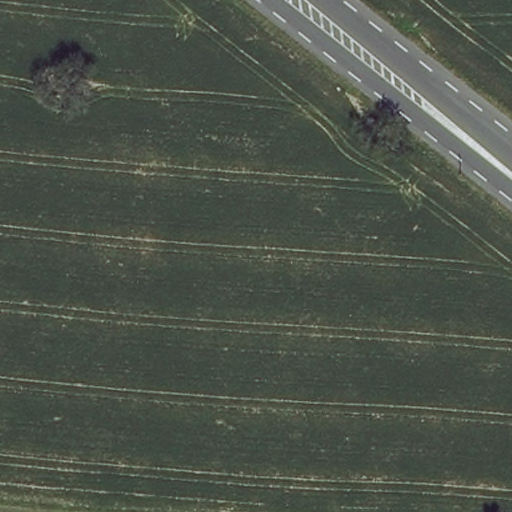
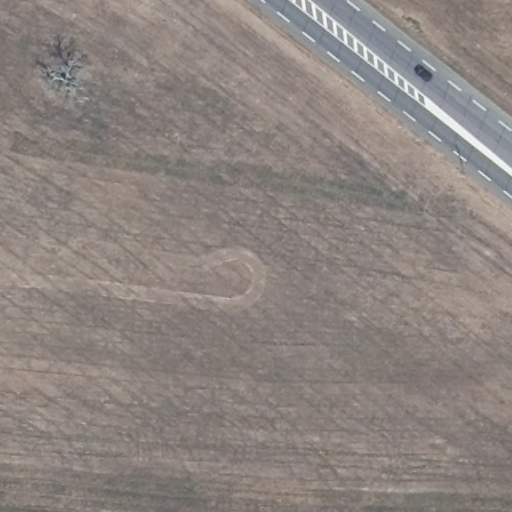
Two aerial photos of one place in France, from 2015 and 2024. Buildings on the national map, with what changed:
[]

